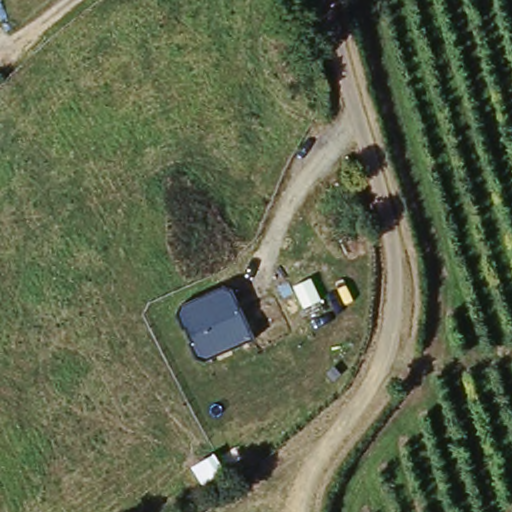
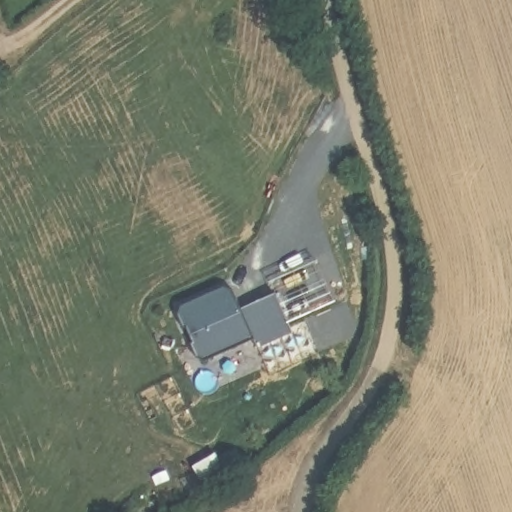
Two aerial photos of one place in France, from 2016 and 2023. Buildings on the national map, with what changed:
unchanged [(228,286),(253,338),(201,361),(179,308),(228,286)]
new [(292,331),(257,347),(253,338),(239,309),(275,293),(292,331)]

